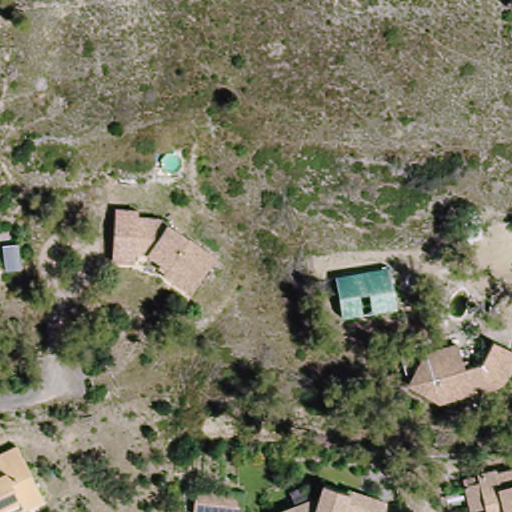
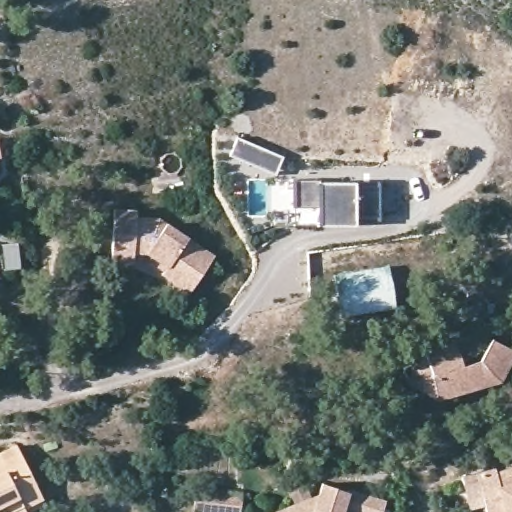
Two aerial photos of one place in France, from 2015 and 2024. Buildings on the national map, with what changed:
new [(320,180),(320,182),(343,182),(355,182),(355,185),(380,185),(379,219),(354,219),(354,226),(318,226),(318,208),(293,207),(294,180),(320,180)]
unchanged [(126,205),(147,210),(153,215),(170,216),(225,257),(203,295),(173,274),(177,264),(158,252),(147,251),(145,259),(124,258),(126,205)]
unchanged [(334,276),(389,267),(396,307),(341,316),(334,276)]
unchanged [(498,393),(432,405),(396,381),(393,360),(392,354),(415,350),(451,342),(452,347),(455,364),(478,361),(485,342),(491,341),(512,350),(512,355),(498,393)]
unchanged [(38,502),(25,509),(26,512),(0,512),(0,456),(15,449),(38,502)]
unchanged [(480,485),(492,482),(505,486),(512,485),(512,512),(458,512),(453,497),(467,492),(463,481),(477,477),(480,485)]
unchanged [(289,512),(318,501),(321,481),(378,495),(374,512),(289,512)]
unchanged [(245,496),(241,512),(214,512),(194,508),(198,487),(245,496)]

